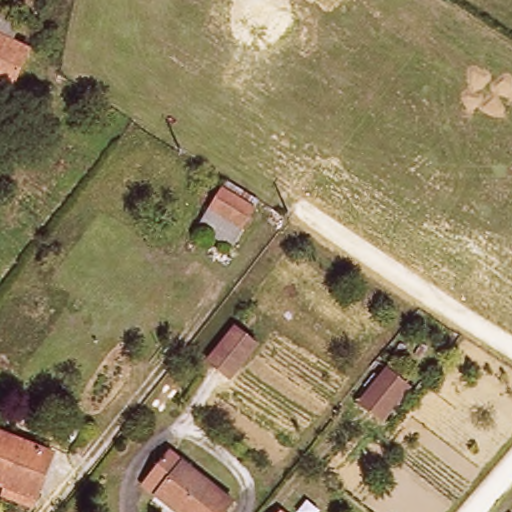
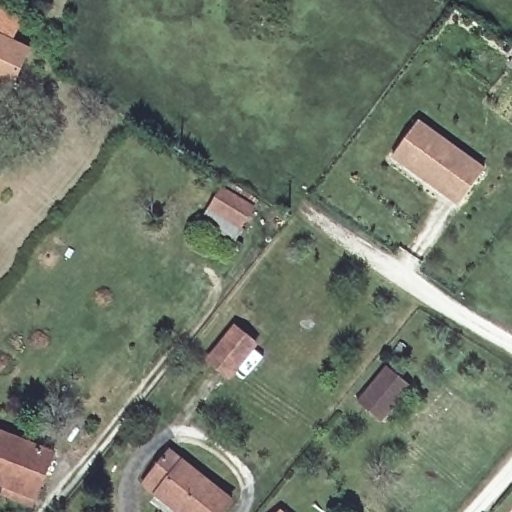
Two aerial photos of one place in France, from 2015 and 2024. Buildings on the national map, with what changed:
unchanged [(10,42),(25,51),(10,85),(0,80),(0,9),(21,20),(10,42)]
new [(486,168),(459,205),(392,158),(418,120),(486,168)]
unchanged [(257,200),(253,207),(228,242),(202,223),(228,180),(240,188),(257,200)]
unchanged [(229,383),(209,368),(234,336),(254,351),(229,383)]
unchanged [(382,418),(362,401),(386,371),(407,387),(382,418)]
unchanged [(30,504),(1,491),(4,485),(0,483),(0,427),(54,450),(30,504)]
unchanged [(231,500),(221,512),(180,512),(155,493),(159,488),(146,476),(167,450),(231,500)]
unchanged [(286,512),(277,512),(280,508),(286,512)]

